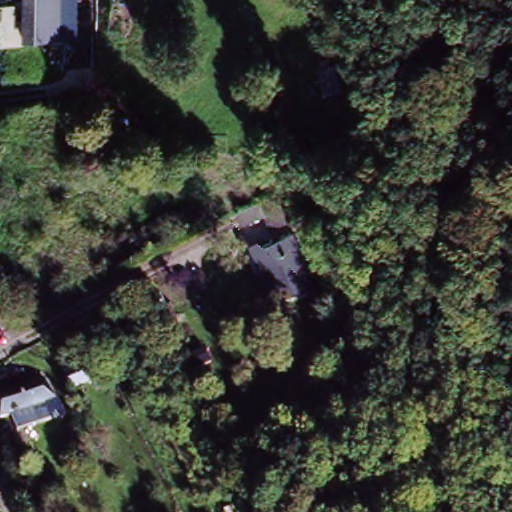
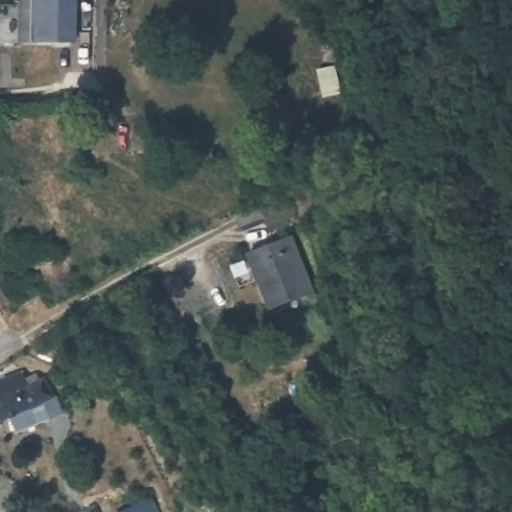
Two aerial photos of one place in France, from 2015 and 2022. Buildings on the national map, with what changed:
unchanged [(22,29),(23,0),(59,0),(59,8),(65,9),(64,45),(35,44),(22,44),(22,29)]
unchanged [(286,226),(268,233),(263,220),(240,229),(235,217),(276,201),(286,226)]
unchanged [(312,298),(270,315),(248,259),(291,242),(312,298)]
unchanged [(51,385),(58,402),(12,421),(5,405),(0,407),(0,366),(6,364),(17,359),(20,367),(31,363),(33,369),(38,367),(51,385)]
unchanged [(100,375),(70,391),(63,379),(93,363),(100,375)]
unchanged [(298,501),(287,507),(265,464),(276,459),(298,501)]
new [(156,511),(157,512),(117,512),(149,497),(156,511)]

